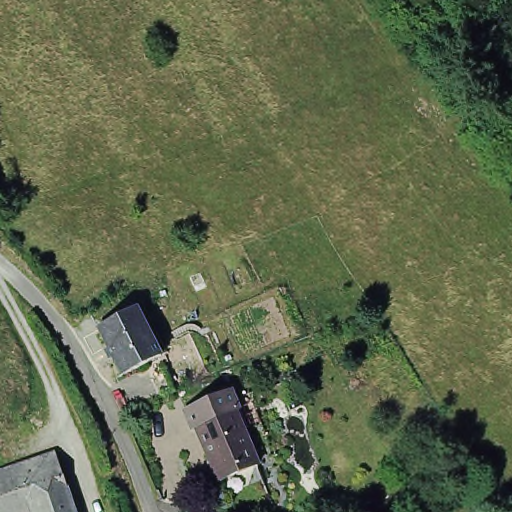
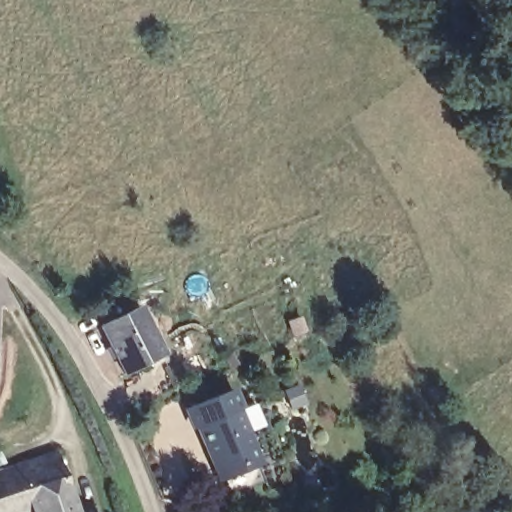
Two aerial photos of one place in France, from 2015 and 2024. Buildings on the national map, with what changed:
unchanged [(165,360),(126,378),(100,331),(140,312),(165,360)]
unchanged [(227,477),(205,423),(199,426),(190,406),(235,386),(244,404),(250,402),(260,422),(249,427),(263,462),(227,477)]
unchanged [(75,512),(33,512),(30,506),(51,500),(41,474),(7,486),(0,465),(54,447),(75,512)]
unchanged [(41,474),(51,500),(30,506),(13,511),(13,512),(0,512),(0,465),(7,486),(41,474)]

